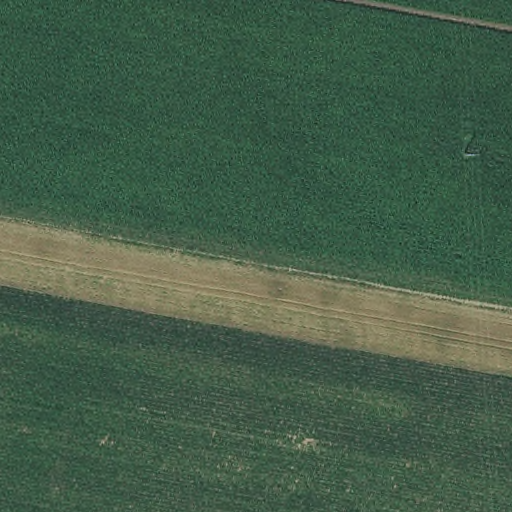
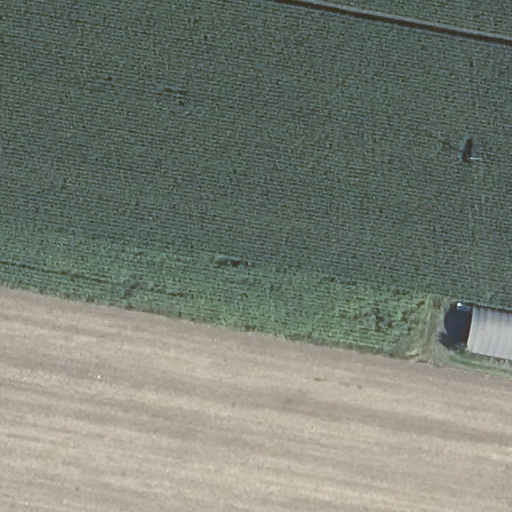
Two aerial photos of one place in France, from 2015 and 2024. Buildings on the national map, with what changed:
new [(512,313),(512,359),(462,350),(470,306),(512,313)]

